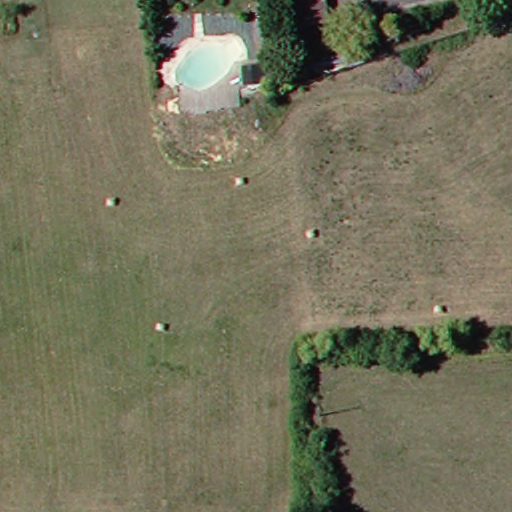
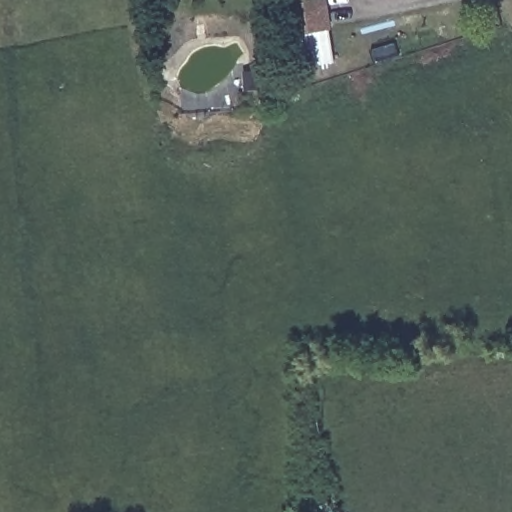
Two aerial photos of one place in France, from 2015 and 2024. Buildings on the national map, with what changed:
unchanged [(318,33),(283,37),(279,0),(314,0),(318,33)]

